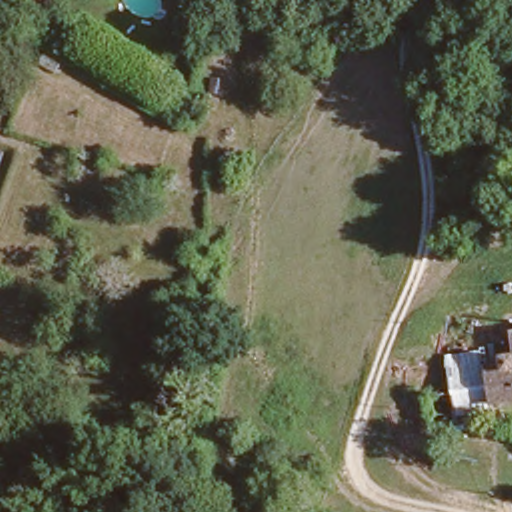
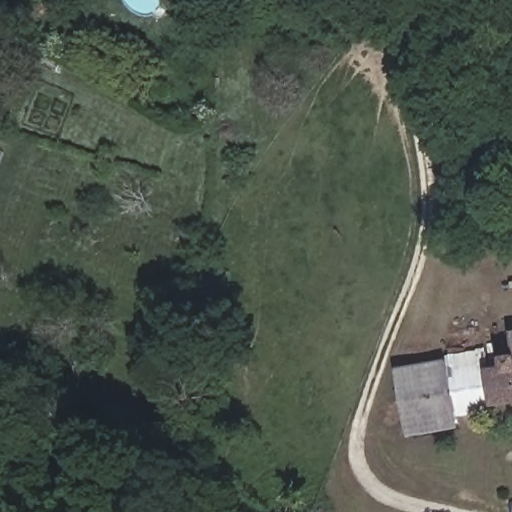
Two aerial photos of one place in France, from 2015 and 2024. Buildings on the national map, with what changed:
unchanged [(486,351),(488,369),(492,403),(456,407),(454,407),(450,358),(450,353),(486,351)]
unchanged [(488,369),(505,368),(503,355),(512,354),(512,401),(492,403),(488,369)]
new [(450,358),(454,407),(456,407),(460,427),(407,437),(395,368),(450,358)]

